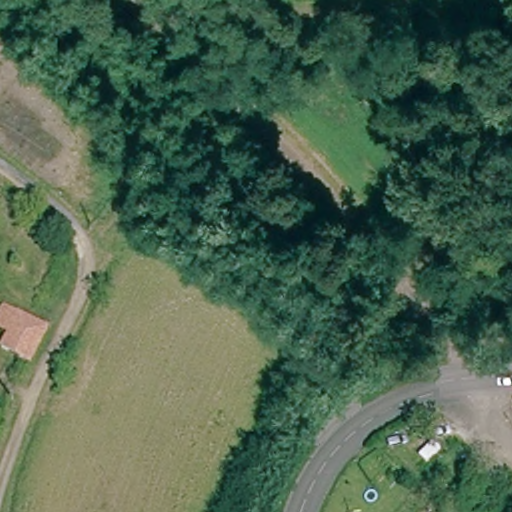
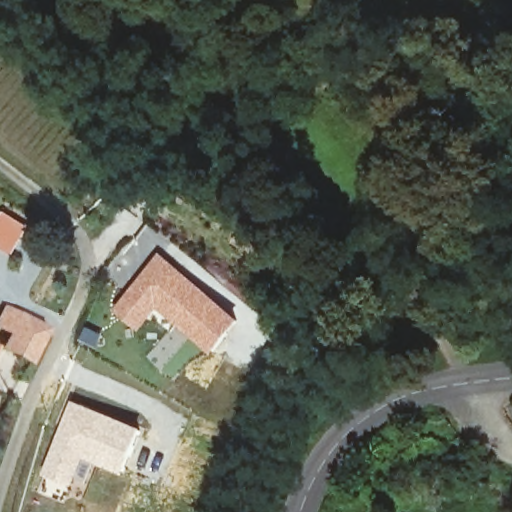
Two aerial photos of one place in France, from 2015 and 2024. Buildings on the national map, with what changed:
new [(160,251),(188,272),(244,320),(214,353),(158,308),(138,330),(112,309),(160,251)]
unchanged [(32,363),(7,355),(9,350),(0,346),(0,323),(3,315),(46,332),(32,363)]
new [(74,400),(143,427),(125,472),(86,457),(71,488),(44,476),(74,400)]

